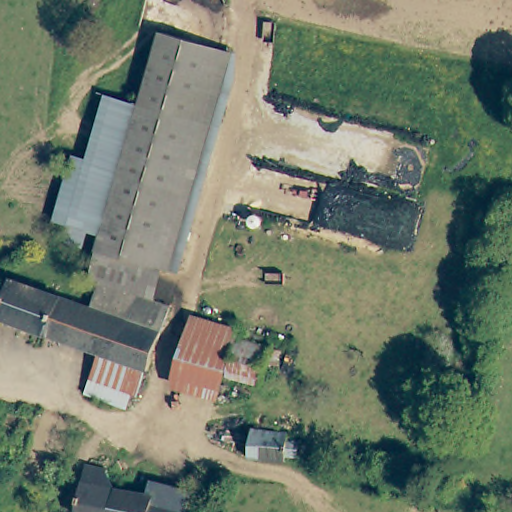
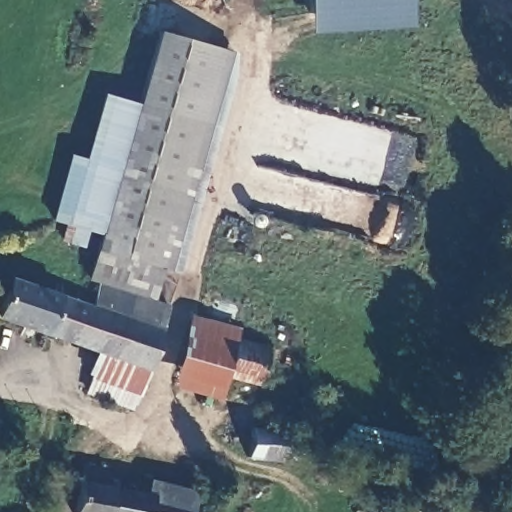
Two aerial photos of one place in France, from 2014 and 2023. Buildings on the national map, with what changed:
new [(410,26),(310,32),(309,0),(409,0),(410,26)]
unchanged [(161,33),(231,52),(232,76),(180,271),(163,270),(157,267),(199,127),(141,109),(161,33)]
unchanged [(104,226),(56,212),(73,159),(90,161),(110,101),(124,105),(141,109),(104,226)]
unchanged [(104,226),(141,109),(199,127),(157,267),(96,250),(104,226)]
unchanged [(96,250),(157,267),(163,270),(156,292),(155,298),(87,277),(89,273),(96,250)]
unchanged [(0,324),(0,322),(12,281),(85,302),(90,282),(169,305),(152,370),(147,368),(105,355),(0,324)]
unchanged [(228,335),(220,333),(210,371),(177,362),(190,316),(245,329),(242,340),(228,335)]
unchanged [(231,377),(210,371),(220,333),(228,335),(242,340),(271,348),(262,386),(231,377)]
unchanged [(90,396),(95,381),(105,355),(147,368),(136,400),(119,393),(115,405),(90,396)]
unchanged [(171,388),(177,362),(210,371),(231,377),(225,402),(171,388)]
unchanged [(249,424),(285,429),(286,438),(293,440),(293,450),(283,452),(281,458),(245,455),(249,424)]
unchanged [(103,485),(192,501),(190,512),(75,512),(86,459),(106,461),(103,485)]

